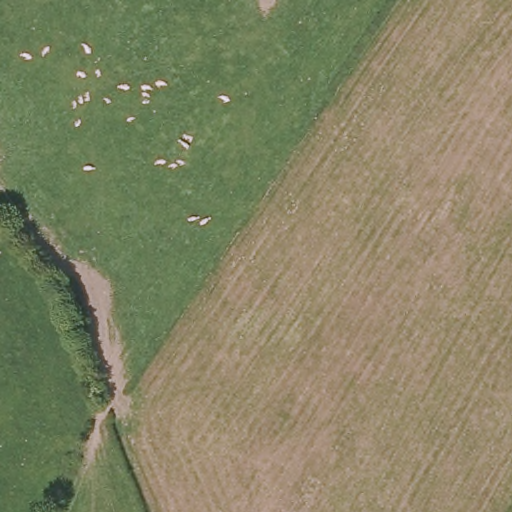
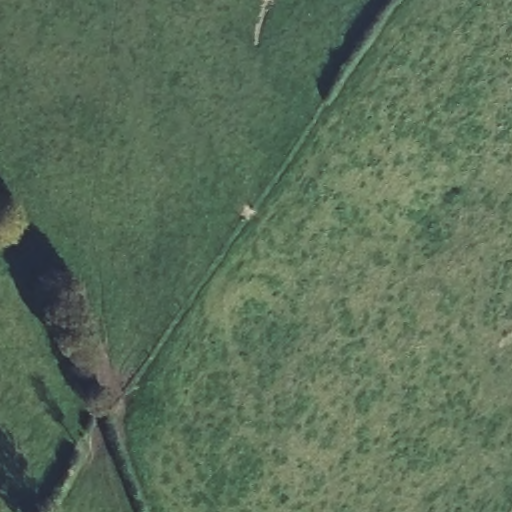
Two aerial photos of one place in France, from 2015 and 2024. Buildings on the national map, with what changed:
unchanged [(265,3),(263,0),(268,0),(265,3)]

